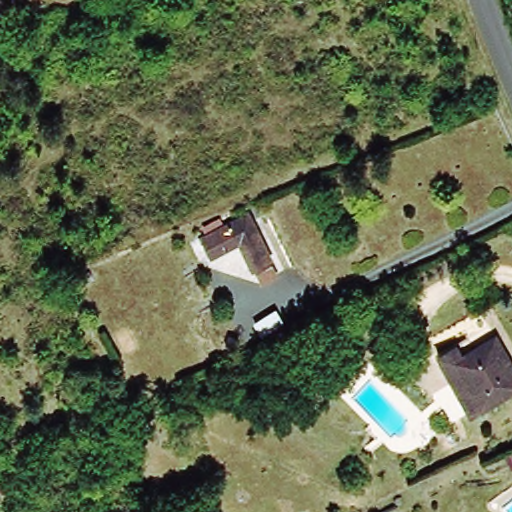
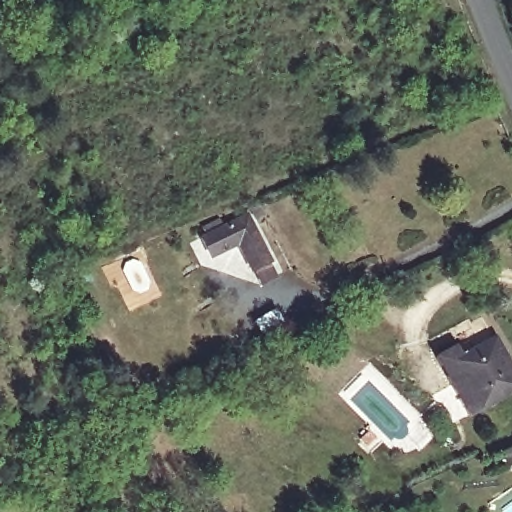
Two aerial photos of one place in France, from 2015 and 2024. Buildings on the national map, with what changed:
unchanged [(233,245),(204,256),(196,237),(246,217),(265,263),(244,271),(233,245)]
unchanged [(491,341),(512,393),(512,397),(461,419),(432,354),(462,340),(466,352),(491,341)]

